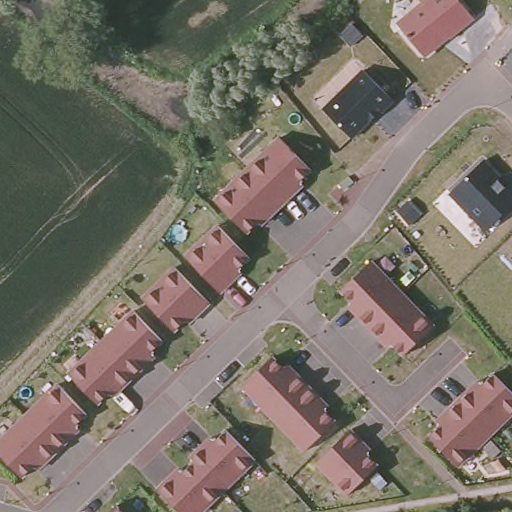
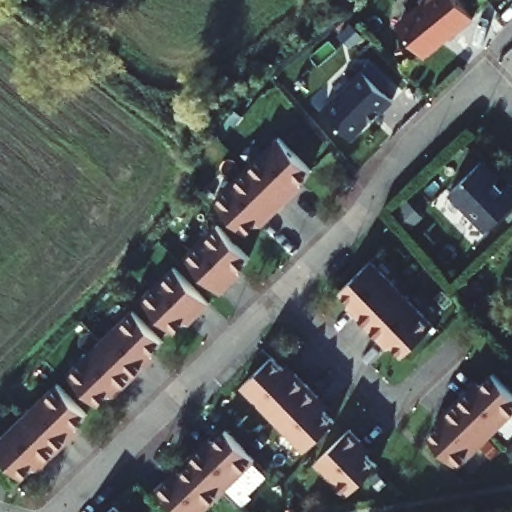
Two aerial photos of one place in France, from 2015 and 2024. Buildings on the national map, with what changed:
unchanged [(475,20),(424,56),(395,20),(422,0),(459,0),(475,20)]
unchanged [(393,100),(352,138),(321,108),(362,69),(393,100)]
unchanged [(316,175),(251,236),(213,198),(278,135),(316,175)]
unchanged [(485,231),(448,192),(484,159),(512,187),(512,206),(485,231)]
unchanged [(254,260),(221,292),(184,255),(217,224),(254,260)]
unchanged [(341,290),(371,261),(403,293),(369,326),(358,315),(348,305),(352,301),(341,290)]
unchanged [(210,303),(178,334),(140,297),(173,265),(210,303)]
unchanged [(380,337),(369,326),(403,293),(434,325),(404,355),(393,343),(389,347),(380,337)]
unchanged [(166,343),(102,406),(67,372),(132,310),(166,343)]
unchanged [(285,366),(289,362),(330,404),(326,410),(336,420),(303,450),(240,387),(273,356),(285,366)]
unchanged [(435,420),(477,378),(482,383),(493,372),(512,391),(512,416),(459,467),(427,435),(439,424),(435,420)]
unchanged [(89,415),(25,478),(0,454),(0,437),(57,382),(89,415)]
unchanged [(182,471),(193,461),(189,456),(210,435),(215,440),(225,428),(255,461),(202,512),(178,512),(155,487),(177,466),(182,471)]
unchanged [(371,450),(368,453),(379,464),(346,496),(313,463),(347,429),(371,450)]
unchanged [(107,512),(115,505),(123,512),(107,512)]

